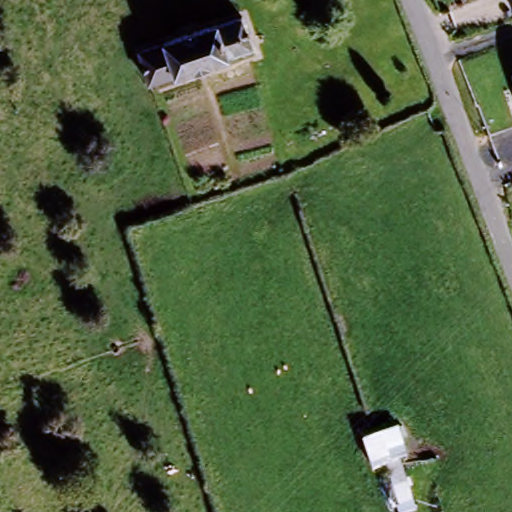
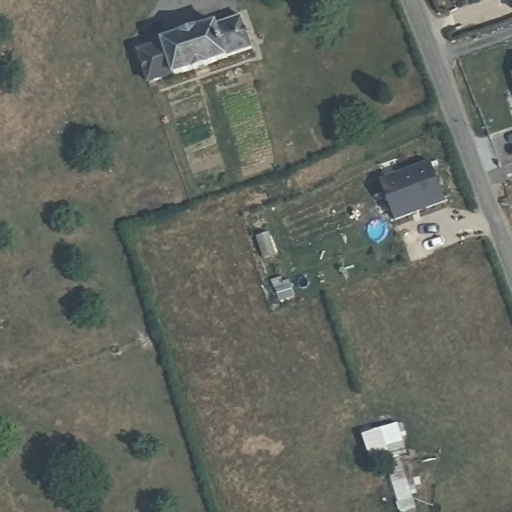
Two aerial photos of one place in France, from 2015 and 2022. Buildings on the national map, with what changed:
unchanged [(512,13),(507,0),(512,0),(512,13)]
unchanged [(238,20),(249,54),(228,61),(230,66),(169,86),(167,80),(147,86),(137,53),(158,47),(156,42),(187,32),(213,24),(214,28),(238,20)]
demolished [(512,77),(511,73),(512,73),(512,77)]
new [(428,163),(445,201),(397,222),(380,184),(428,163)]
unchanged [(404,447),(383,457),(373,434),(397,425),(404,447)]
unchanged [(395,512),(387,478),(404,473),(415,511),(412,512),(395,512)]

